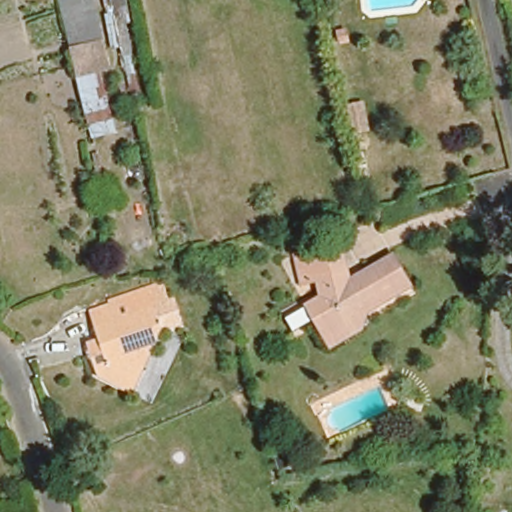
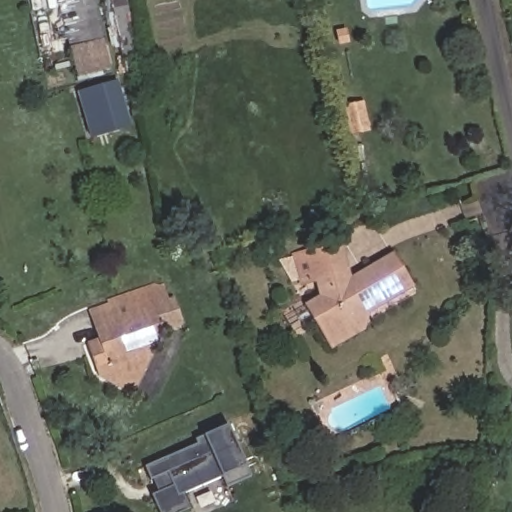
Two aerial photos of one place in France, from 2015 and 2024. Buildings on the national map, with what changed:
new [(59,0),(96,0),(111,69),(76,78),(59,0)]
demolished [(113,122),(90,127),(80,82),(76,66),(75,67),(73,57),(69,39),(60,0),(93,0),(100,32),(105,49),(108,59),(97,62),(101,76),(113,122)]
unchanged [(345,34),(333,36),(331,22),(342,20),(345,34)]
new [(91,139),(77,91),(118,80),(131,127),(91,139)]
unchanged [(366,121),(349,125),(342,96),(359,92),(366,121)]
unchanged [(413,284),(361,316),(362,334),(330,352),(305,307),(316,301),(311,274),(341,264),(345,280),(394,250),(413,284)]
unchanged [(172,322),(162,336),(144,342),(147,356),(142,367),(128,372),(119,375),(107,365),(102,355),(110,352),(100,316),(95,298),(103,296),(125,290),(131,307),(164,298),(172,322)]
new [(194,434),(227,419),(252,471),(227,482),(223,472),(184,489),(191,505),(177,512),(162,512),(152,491),(173,481),(167,469),(151,476),(144,462),(196,439),(194,434)]

